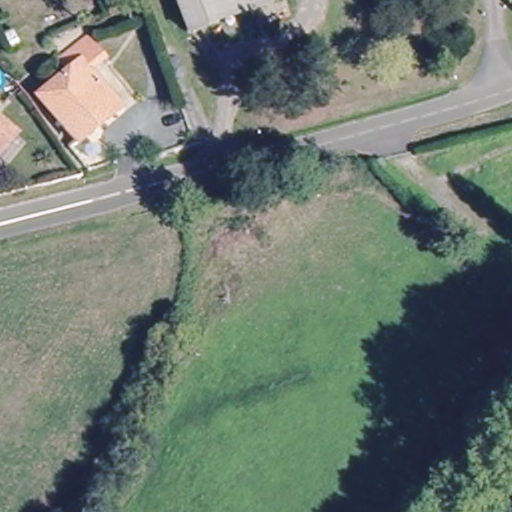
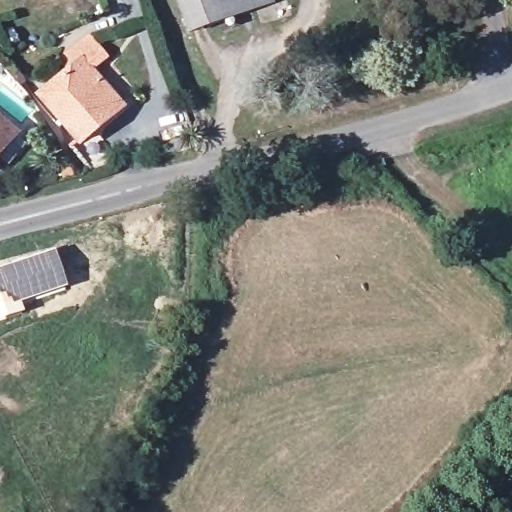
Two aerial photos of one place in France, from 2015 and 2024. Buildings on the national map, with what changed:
unchanged [(188,29),(178,0),(263,0),(188,29)]
unchanged [(40,92),(83,55),(124,98),(83,136),(71,125),(40,92)]
unchanged [(0,72),(0,57),(7,65),(0,72)]
unchanged [(0,156),(0,109),(23,131),(0,156)]
new [(55,249),(68,287),(21,304),(24,312),(0,322),(0,267),(55,249)]

